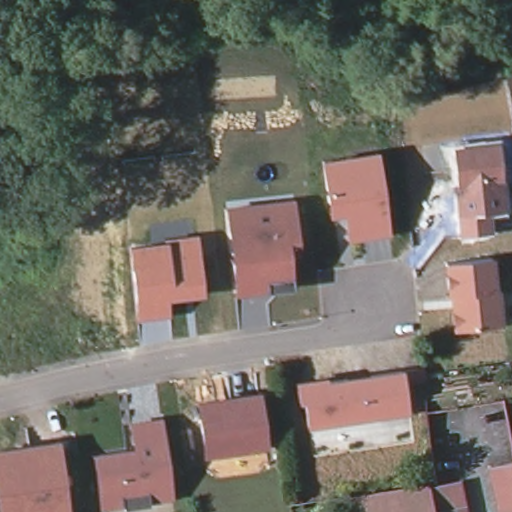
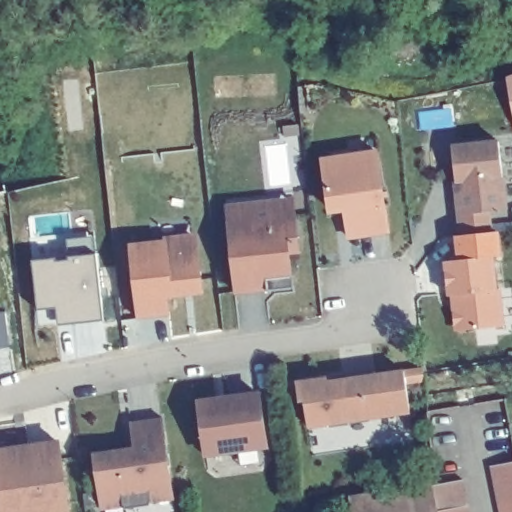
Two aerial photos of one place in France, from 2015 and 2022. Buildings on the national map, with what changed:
unchanged [(507,83),(512,82),(512,106),(507,83)]
unchanged [(455,151),(502,147),(510,215),(462,219),(460,200),(459,186),(455,151)]
unchanged [(345,238),(342,215),(330,217),(320,159),(377,150),(390,232),(345,238)]
unchanged [(283,290),(271,292),(271,294),(270,294),(270,292),(239,295),(235,261),(234,261),(234,260),(238,260),(236,238),(234,239),(234,240),(233,239),(230,210),(258,208),(297,204),(298,218),(301,241),(302,241),(302,242),(301,242),(302,254),(292,255),(295,280),(295,289),(283,290)]
unchanged [(167,301),(168,321),(140,324),(131,242),(198,235),(205,295),(167,301)]
new [(95,238),(96,254),(102,319),(58,324),(56,306),(38,308),(33,260),(56,259),(56,262),(70,260),(69,256),(66,239),(95,238)]
unchanged [(452,300),(449,266),(495,261),(499,294),(502,294),(505,331),(464,335),(458,330),(457,316),(455,300),(452,300)]
new [(10,346),(0,348),(0,313),(6,311),(10,346)]
unchanged [(310,430),(305,403),(299,405),(296,382),(327,378),(328,383),(405,372),(413,415),(310,430)]
unchanged [(205,460),(196,400),(262,394),(271,448),(205,460)]
unchanged [(130,511),(126,511),(126,507),(103,510),(99,478),(101,478),(100,470),(98,470),(96,458),(95,458),(95,457),(128,453),(128,454),(127,454),(128,460),(138,458),(134,427),(163,423),(163,420),(164,420),(169,456),(168,457),(168,456),(166,456),(167,469),(171,469),(175,501),(152,504),(152,508),(130,511)]
unchanged [(71,512),(0,512),(0,448),(60,440),(71,512)]
unchanged [(510,455),(512,464),(512,512),(493,512),(484,460),(510,455)]
unchanged [(430,488),(435,487),(460,483),(466,512),(349,512),(347,501),(430,488)]

